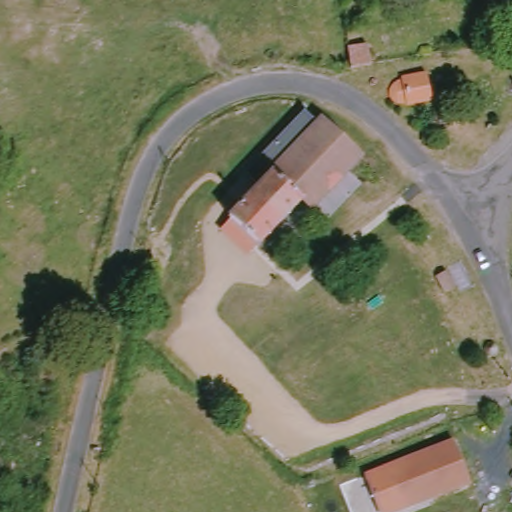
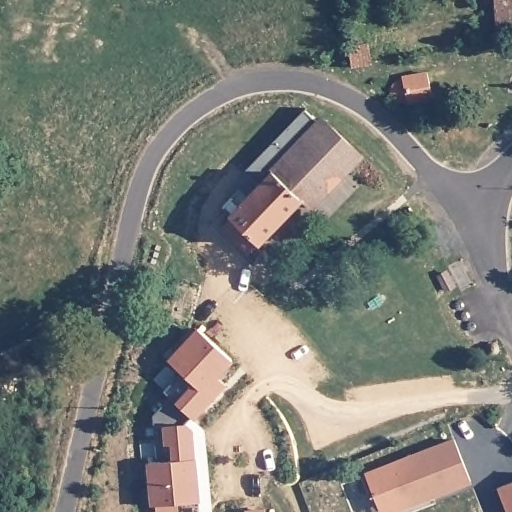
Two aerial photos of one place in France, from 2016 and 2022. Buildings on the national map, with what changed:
unchanged [(510,28),(490,29),(488,0),(512,0),(512,15),(510,16),(510,28)]
unchanged [(339,61),(365,52),(367,73),(342,76),(339,61)]
unchanged [(429,71),(434,98),(408,104),(407,101),(403,101),(399,100),(395,96),(394,91),(394,84),(397,81),(403,79),(403,75),(429,71)]
unchanged [(355,153),(307,208),(299,201),(267,172),(300,136),(315,116),(337,138),(355,153)]
unchanged [(226,249),(231,243),(218,230),(224,223),(267,172),(299,201),(256,251),(255,252),(244,265),(226,249)]
unchanged [(408,242),(405,237),(417,226),(421,232),(413,238),(408,242)]
unchanged [(464,291),(452,296),(447,285),(458,279),(464,291)]
new [(152,505),(146,463),(173,461),(171,445),(165,445),(164,426),(187,424),(190,416),(175,402),(193,382),(169,358),(196,329),(233,361),(219,378),(226,385),(190,426),(194,431),(200,501),(177,503),(178,512),(152,512),(152,505)]
unchanged [(456,438),(475,489),(437,504),(434,495),(418,501),(420,506),(402,512),(381,512),(367,472),(456,438)]
new [(497,488),(512,482),(512,512),(505,512),(497,488)]

